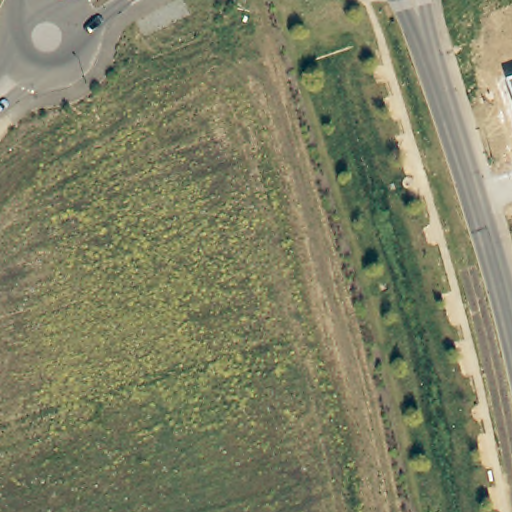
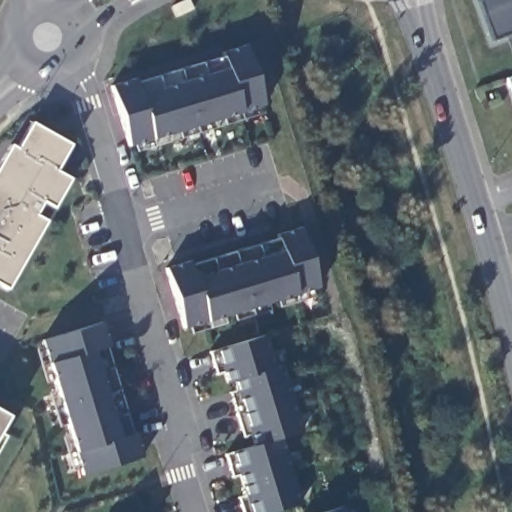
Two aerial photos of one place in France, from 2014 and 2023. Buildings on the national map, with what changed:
new [(477,2),(478,0),(512,0),(512,34),(493,41),(477,2)]
new [(135,78),(136,82),(222,57),(222,53),(246,46),(264,106),(255,109),(257,116),(138,152),(136,145),(128,147),(111,86),(135,78)]
unchanged [(512,77),(512,95),(506,80),(512,77)]
new [(10,145),(17,150),(32,124),(59,123),(70,146),(56,172),(69,180),(54,209),(43,202),(35,216),(46,222),(7,289),(0,285),(0,162),(10,145)]
new [(190,262),(191,266),(277,239),(276,235),(300,228),(320,287),(310,289),(313,298),(282,307),(280,299),(263,304),(266,313),(193,336),(190,327),(182,329),(167,270),(190,262)]
new [(101,324),(109,348),(105,350),(131,434),(134,433),(142,459),(82,476),(76,452),(50,364),(42,340),(101,324)]
new [(275,369),(283,366),(303,432),(282,438),(301,505),(276,512),(242,512),(237,498),(246,495),(240,476),(232,478),(226,455),(234,452),(254,446),(251,437),(243,438),(229,392),(237,389),(235,381),(226,383),(224,374),(217,376),(209,353),(217,351),(265,336),(275,369)]
new [(7,415),(0,428),(0,411),(7,415)]
new [(345,512),(323,512),(343,506),(345,512)]

